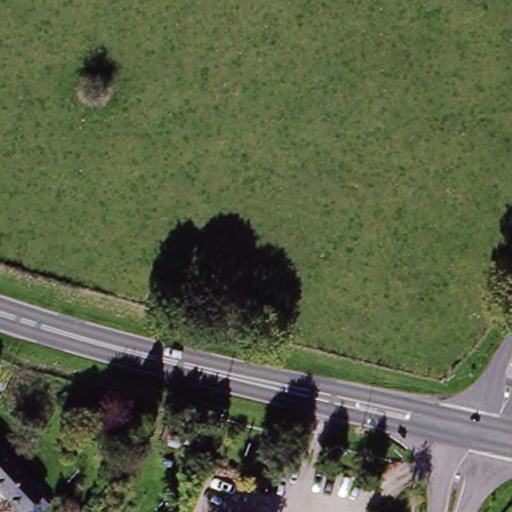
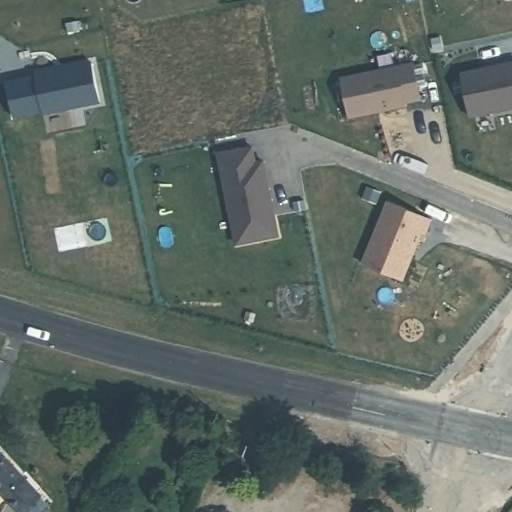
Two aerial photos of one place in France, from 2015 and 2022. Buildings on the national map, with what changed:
new [(55,67),(56,69),(73,66),(73,64),(90,61),(98,100),(40,111),(33,71),(55,67)]
new [(512,109),(468,119),(460,74),(512,62),(512,109)]
new [(413,64),(420,100),(405,102),(405,105),(348,116),(340,77),(413,64)]
new [(40,111),(13,117),(5,82),(34,75),(40,111)]
new [(252,147),(255,163),(263,161),(270,200),(265,200),(268,216),(273,216),(277,237),(235,245),(218,153),(252,147)]
new [(430,219),(405,280),(360,263),(386,201),(430,219)]
unchanged [(16,470),(0,488),(0,456),(16,470)]

